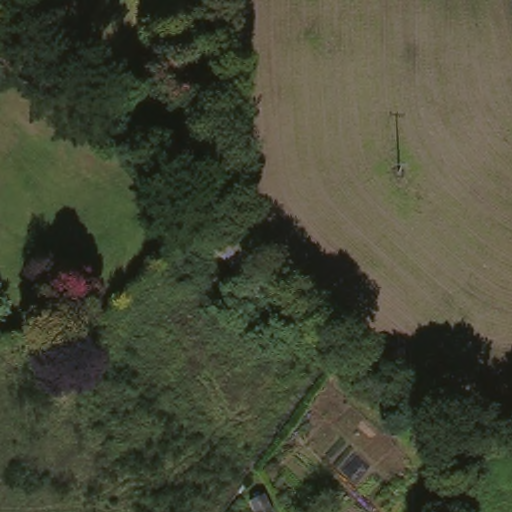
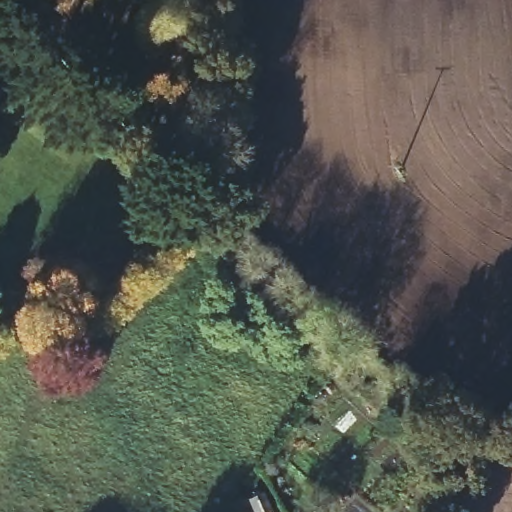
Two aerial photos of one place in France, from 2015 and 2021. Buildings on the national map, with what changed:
unchanged [(255,302),(207,249),(222,235),(270,288),(255,302)]

